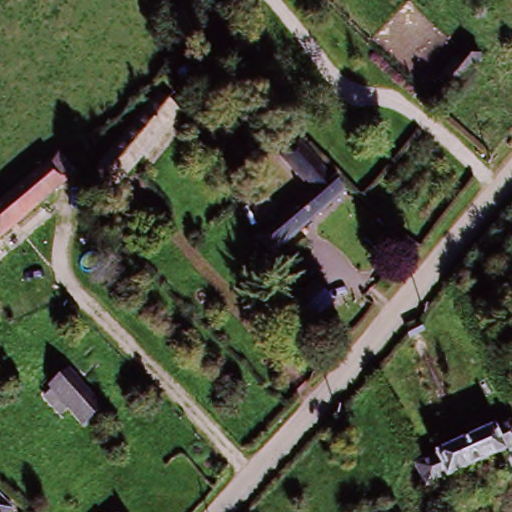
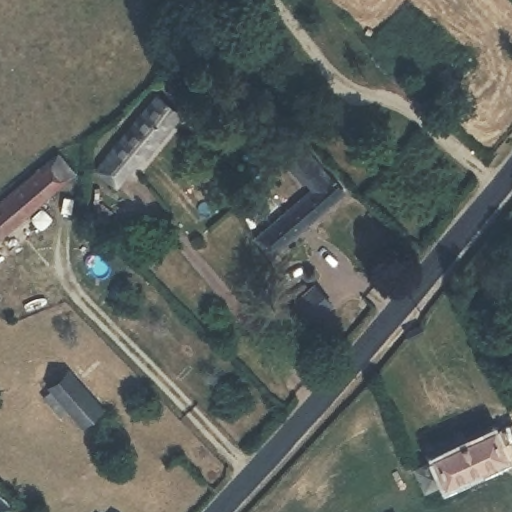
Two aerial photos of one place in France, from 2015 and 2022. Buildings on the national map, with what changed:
unchanged [(446,78),(471,49),(484,60),(459,90),(446,78)]
unchanged [(156,97),(176,112),(131,172),(128,176),(120,184),(101,171),(108,161),(156,97)]
unchanged [(271,260),(261,237),(314,191),(293,166),(308,154),(329,180),(344,196),(271,260)]
unchanged [(65,180),(1,235),(0,233),(0,199),(47,159),(65,180)]
unchanged [(324,285),(346,305),(328,325),(306,303),(324,285)]
unchanged [(71,413),(68,416),(64,412),(58,415),(46,400),(73,376),(90,396),(105,412),(86,430),(71,413)]
unchanged [(502,460),(424,495),(412,470),(511,425),(512,428),(512,471),(508,473),(502,460)]
unchanged [(0,512),(0,505),(7,512),(0,512)]

